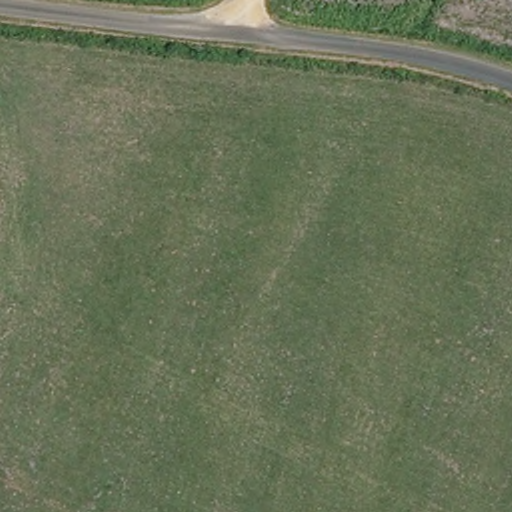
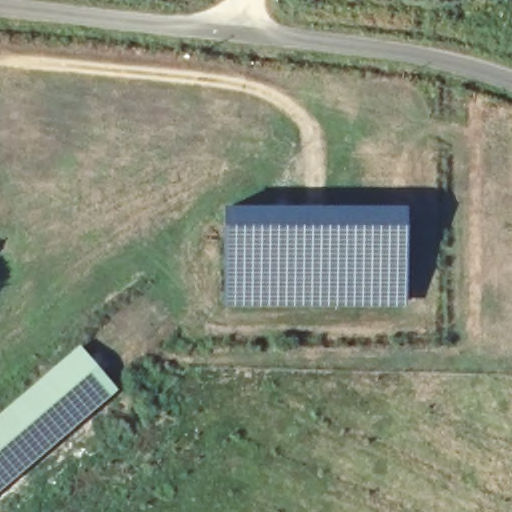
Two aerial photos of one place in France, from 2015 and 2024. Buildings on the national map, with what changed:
new [(224,305),(225,207),(407,206),(407,305),(224,305)]
new [(116,388),(0,489),(0,414),(80,346),(116,388)]

